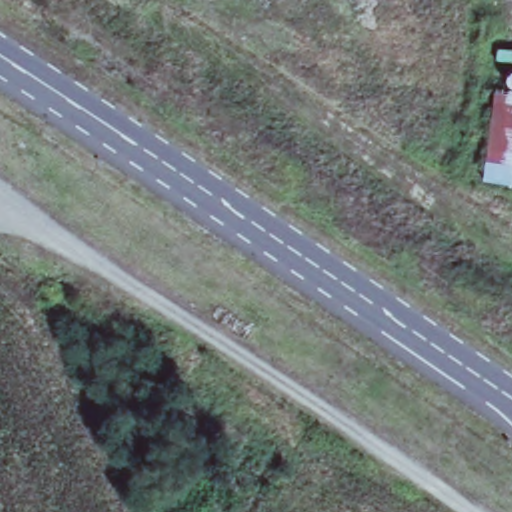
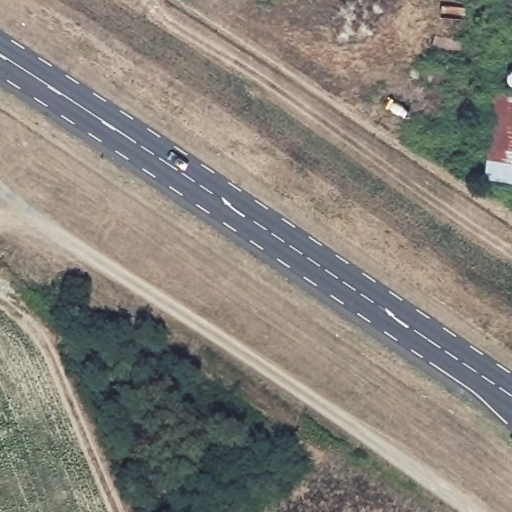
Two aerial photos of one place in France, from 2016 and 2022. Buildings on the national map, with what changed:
unchanged [(492,69),(512,71),(512,181),(480,177),(492,69)]

